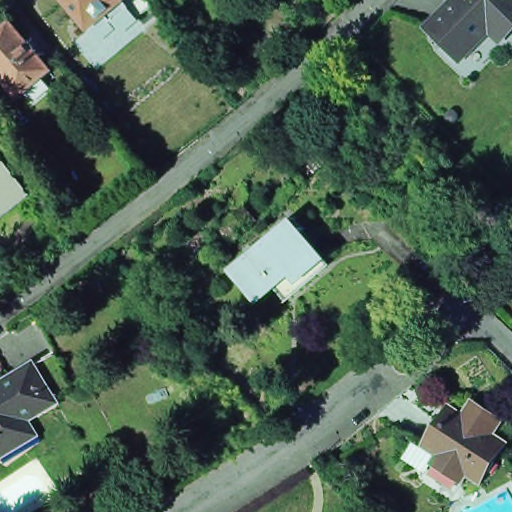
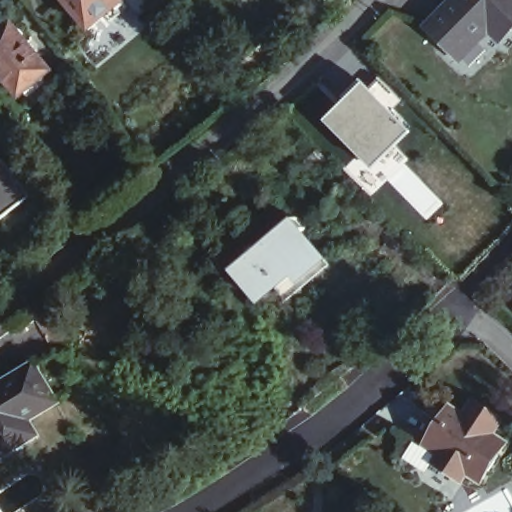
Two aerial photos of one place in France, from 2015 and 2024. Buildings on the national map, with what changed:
unchanged [(116,27),(111,21),(94,35),(93,36),(92,35),(93,34),(65,1),(66,0),(124,0),(129,6),(134,13),(118,26),(116,27)]
unchanged [(512,0),(512,29),(498,15),(482,31),(486,35),(464,56),(432,23),(454,0),(512,0)]
unchanged [(7,34),(23,20),(61,66),(30,93),(0,56),(0,32),(6,32),(7,34)]
new [(364,84),(411,131),(371,171),(323,122),(364,84)]
unchanged [(331,134),(341,146),(329,156),(319,144),(331,134)]
unchanged [(0,219),(0,143),(37,191),(0,219)]
unchanged [(320,152),(327,161),(311,176),(304,167),(320,152)]
unchanged [(482,186),(496,201),(485,212),(471,197),(482,186)]
unchanged [(224,229),(245,211),(256,224),(234,242),(224,229)]
unchanged [(253,257),(248,251),(254,246),(259,252),(298,218),(308,229),(303,233),(324,259),(283,294),(276,287),(259,302),(234,272),(253,257)]
unchanged [(512,310),(512,317),(509,314),(512,310)]
unchanged [(38,436),(11,452),(3,438),(0,439),(0,385),(35,364),(59,403),(57,404),(29,421),(38,436)]
unchanged [(440,417),(450,402),(454,405),(464,411),(474,396),(503,415),(497,423),(493,430),(507,439),(481,478),(467,469),(464,473),(446,461),(436,455),(439,450),(424,441),(440,417)]

